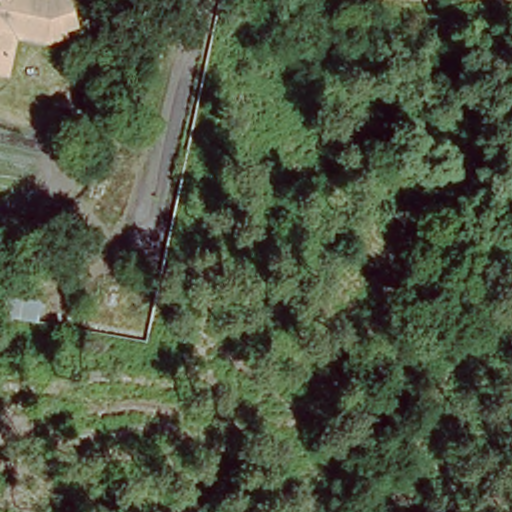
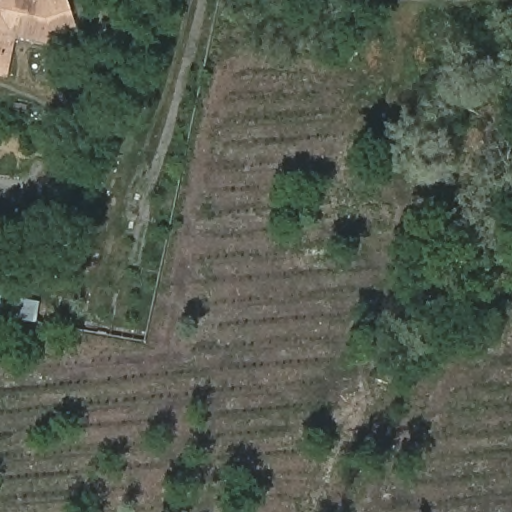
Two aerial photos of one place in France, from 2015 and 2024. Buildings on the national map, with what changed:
unchanged [(9,2),(9,0),(39,0),(43,1),(46,0),(61,0),(68,20),(73,36),(60,40),(45,45),(11,37),(6,58),(1,77),(0,77),(0,0),(9,2)]

